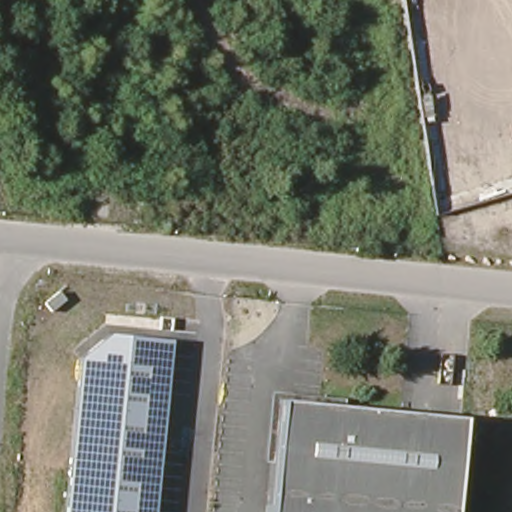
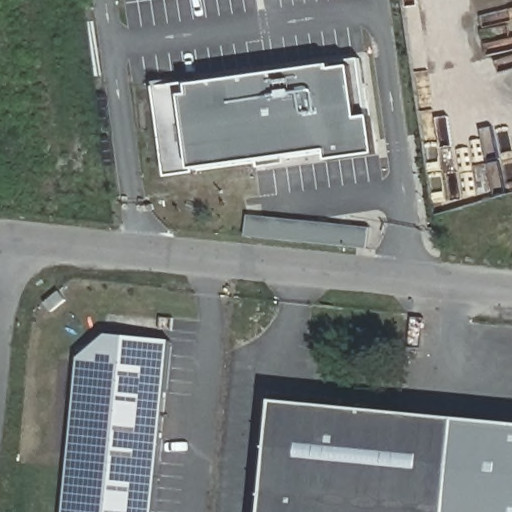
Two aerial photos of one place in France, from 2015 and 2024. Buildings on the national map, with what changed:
new [(348,65),(358,118),(370,115),(376,158),(330,164),(326,150),(162,175),(153,89),(348,65)]
new [(245,236),(247,215),(369,228),(367,249),(245,236)]
unchanged [(80,359),(108,335),(128,337),(174,341),(157,512),(65,512),(80,359)]
unchanged [(452,512),(269,512),(278,403),(461,421),(452,512)]
new [(461,421),(512,424),(512,512),(452,512),(461,421)]

